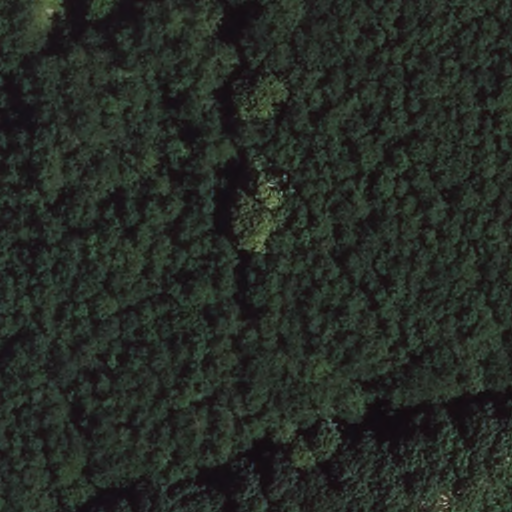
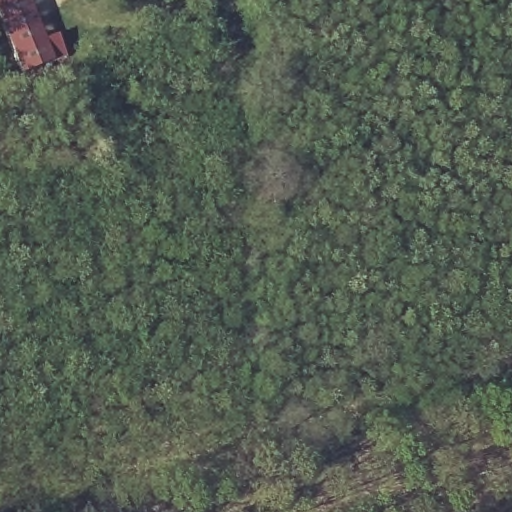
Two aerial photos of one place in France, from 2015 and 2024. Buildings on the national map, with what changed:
new [(65,54),(50,60),(20,72),(0,19),(0,0),(27,0),(42,39),(57,34),(65,54)]

